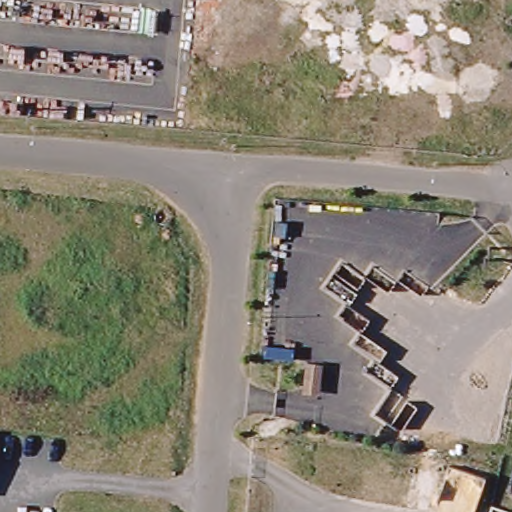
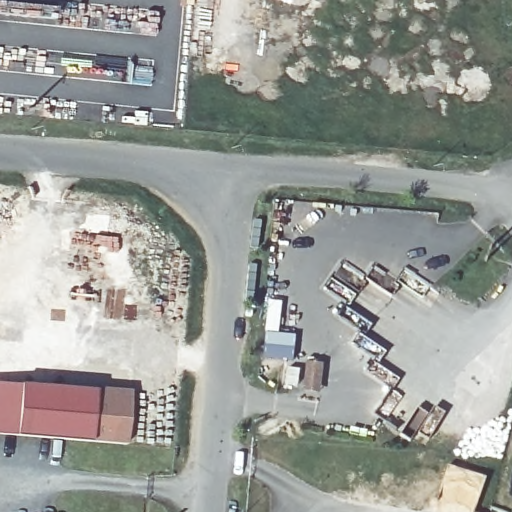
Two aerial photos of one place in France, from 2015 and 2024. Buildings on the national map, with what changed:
unchanged [(306,382),(308,361),(323,362),(321,383),(306,382)]
new [(20,384),(16,436),(0,434),(0,382),(20,384)]
new [(20,384),(131,394),(126,446),(16,436),(20,384)]

